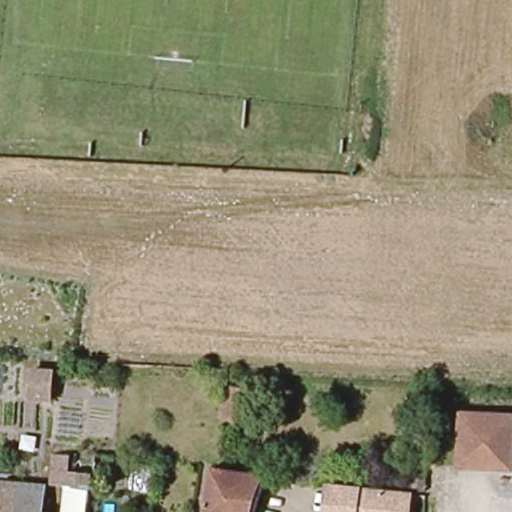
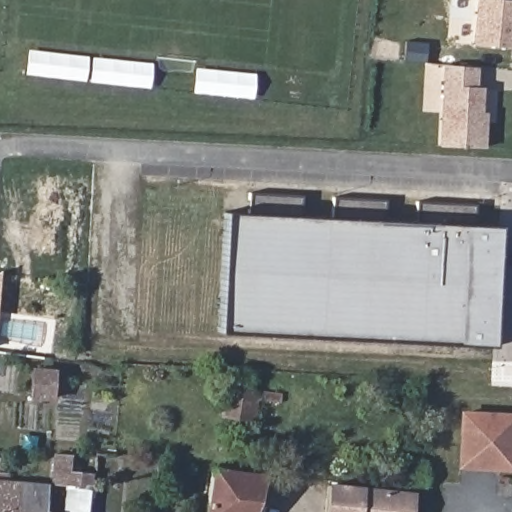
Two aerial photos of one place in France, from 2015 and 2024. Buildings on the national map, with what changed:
new [(473,28),(476,0),(511,0),(512,0),(512,48),(475,45),(477,28),(473,28)]
new [(437,146),(441,65),(478,67),(477,87),(483,87),(482,113),(486,113),(485,148),(437,146)]
new [(247,215),(249,194),(303,196),(302,217),(247,215)]
new [(332,219),(333,197),(384,200),(383,221),(332,219)]
new [(415,222),(416,202),(477,205),(476,226),(415,222)]
new [(218,332),(224,214),(247,215),(302,217),(332,219),(383,221),(415,222),(476,226),(498,227),(493,346),(218,332)]
new [(3,268),(0,319),(0,271),(3,268)]
unchanged [(47,369),(46,396),(23,394),(25,368),(47,369)]
unchanged [(251,388),(249,418),(231,416),(234,387),(251,388)]
unchanged [(458,474),(464,410),(512,413),(512,471),(511,477),(458,474)]
unchanged [(66,485),(48,482),(50,453),(64,454),(63,473),(90,477),(90,512),(66,512),(66,485)]
unchanged [(108,469),(107,478),(90,477),(90,457),(109,458),(109,462),(119,463),(118,469),(108,469)]
unchanged [(259,512),(207,512),(211,467),(246,472),(247,465),(258,466),(257,474),(266,475),(259,512)]
unchanged [(403,468),(412,468),(420,468),(419,487),(411,487),(403,487),(403,468)]
unchanged [(43,498),(56,499),(56,501),(55,512),(0,512),(0,482),(44,485),(43,498)]
unchanged [(325,485),(405,495),(404,512),(323,512),(325,485)]

